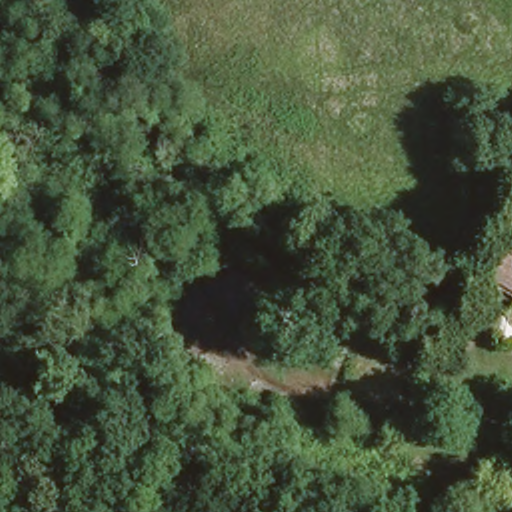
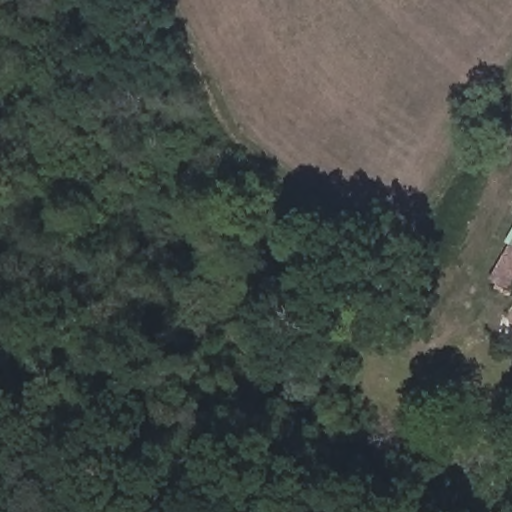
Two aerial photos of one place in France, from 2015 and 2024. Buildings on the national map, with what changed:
unchanged [(512,272),(512,282),(508,280),(512,272)]

